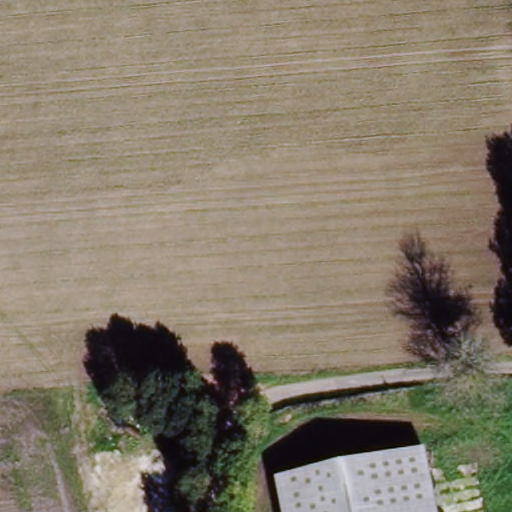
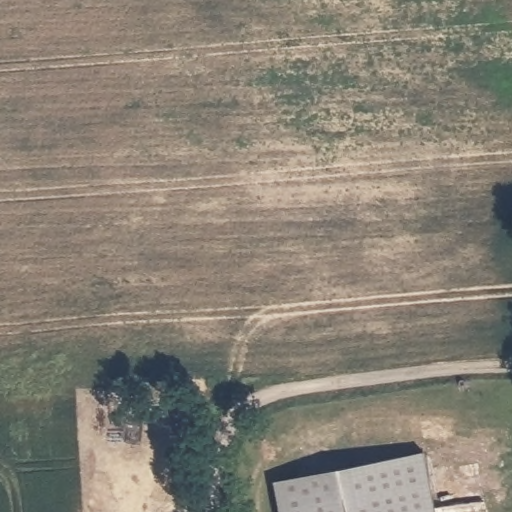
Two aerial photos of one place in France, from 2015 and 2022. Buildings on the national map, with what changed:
unchanged [(424,452),(435,512),(277,512),(270,479),(424,452)]

